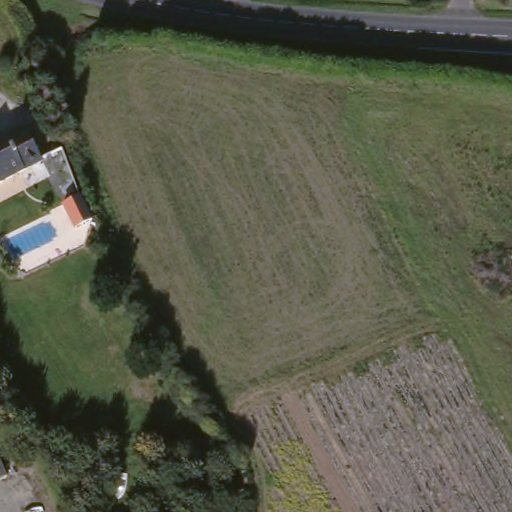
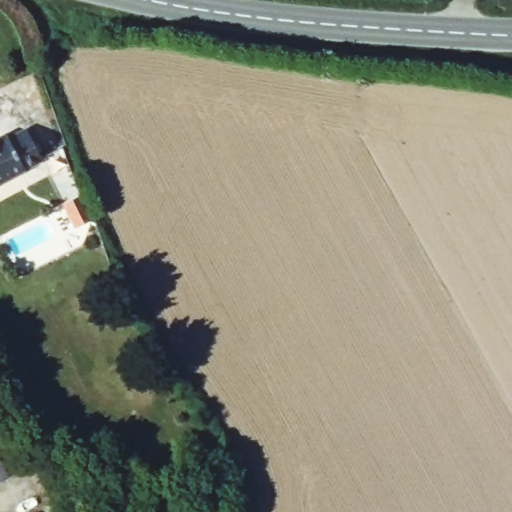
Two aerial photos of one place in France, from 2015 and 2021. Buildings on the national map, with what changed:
unchanged [(9,127),(24,121),(41,152),(25,160),(28,166),(0,182),(0,125),(1,125),(9,127)]
unchanged [(0,477),(0,463),(6,474),(0,477)]

